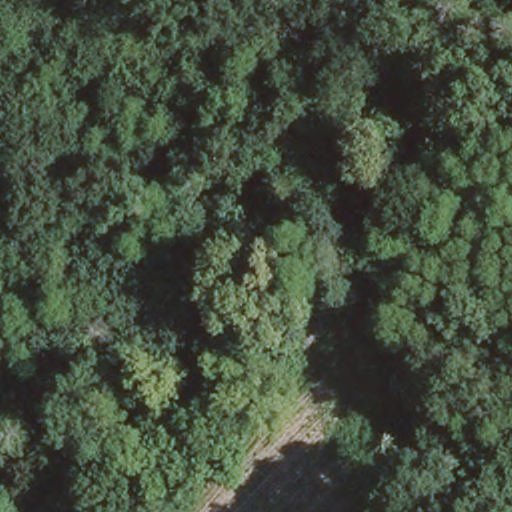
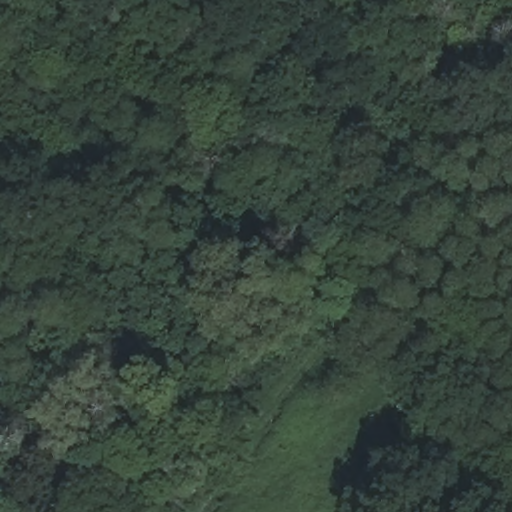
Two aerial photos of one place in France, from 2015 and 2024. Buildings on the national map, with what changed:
unchanged [(87,488),(64,472),(84,442),(107,457),(87,488)]

